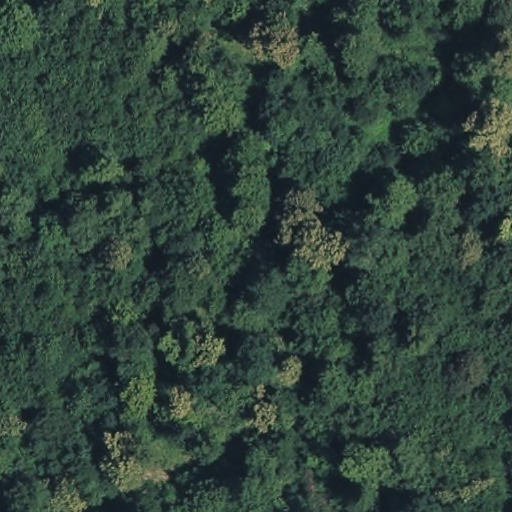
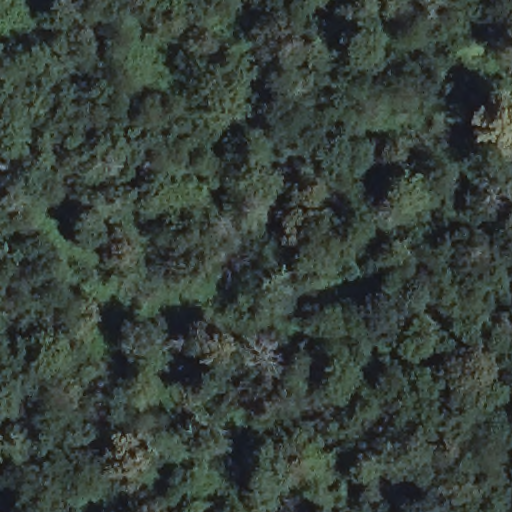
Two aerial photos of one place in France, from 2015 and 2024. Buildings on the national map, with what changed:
[]

